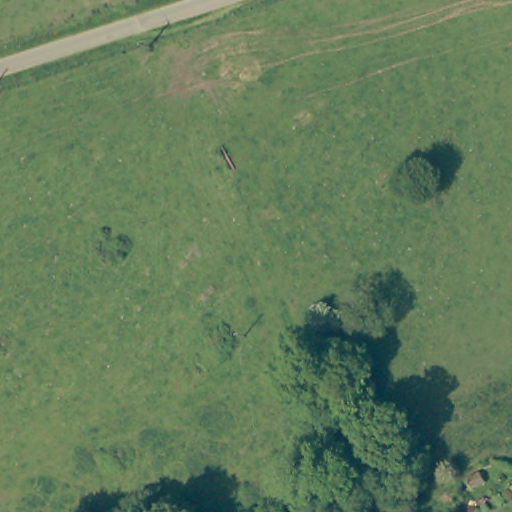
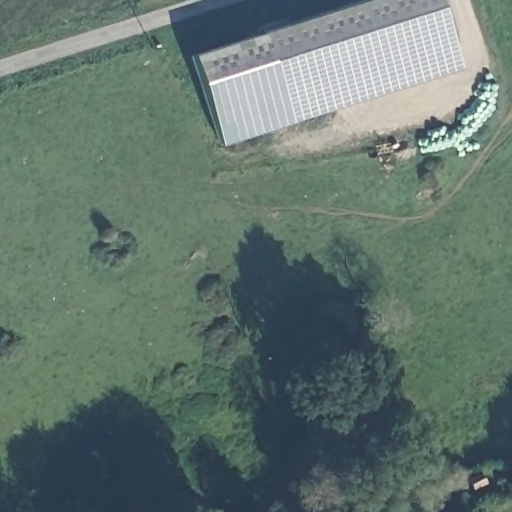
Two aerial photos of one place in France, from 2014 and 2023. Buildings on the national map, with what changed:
new [(358,0),(436,0),(457,68),(220,144),(189,54),(358,0)]

